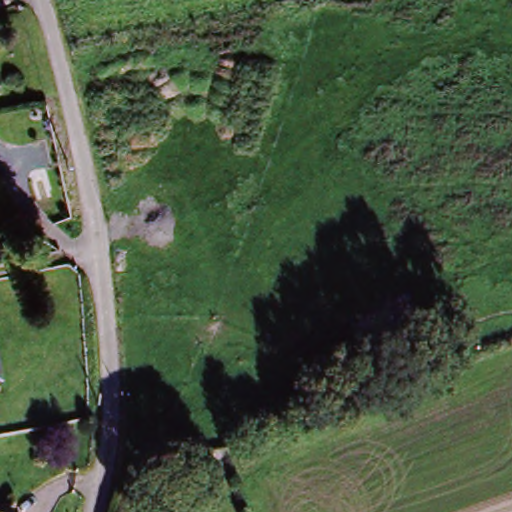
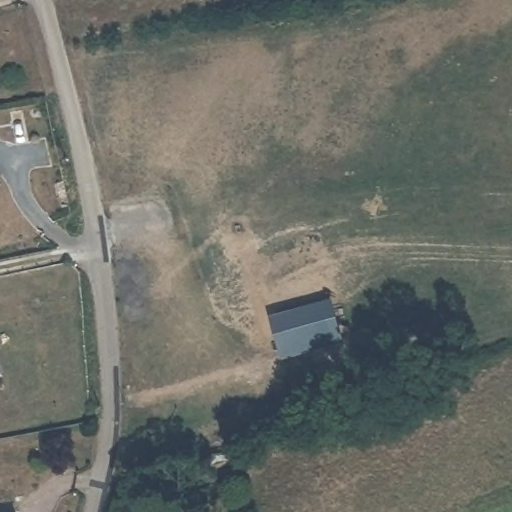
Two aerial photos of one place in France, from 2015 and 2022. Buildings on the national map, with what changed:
new [(343,340),(280,358),(267,314),(330,296),(343,340)]
unchanged [(0,375),(0,341),(7,373),(0,375)]

